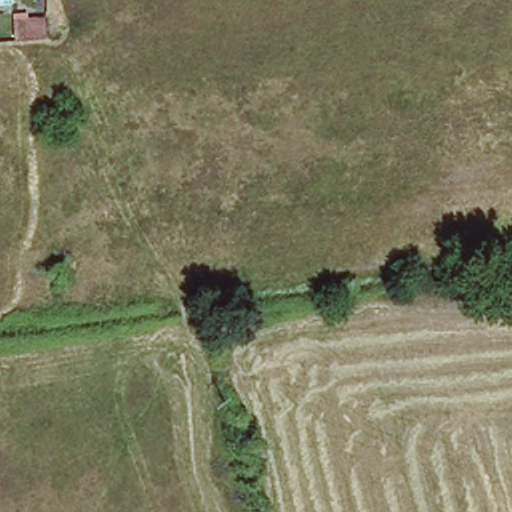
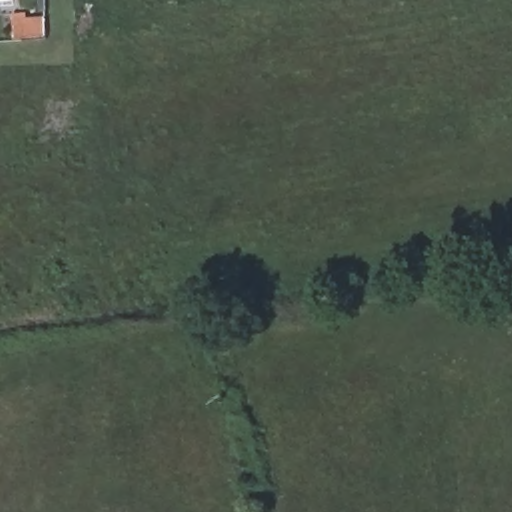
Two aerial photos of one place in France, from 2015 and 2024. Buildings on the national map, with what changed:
unchanged [(44,18),(45,36),(15,38),(14,21),(44,18)]

